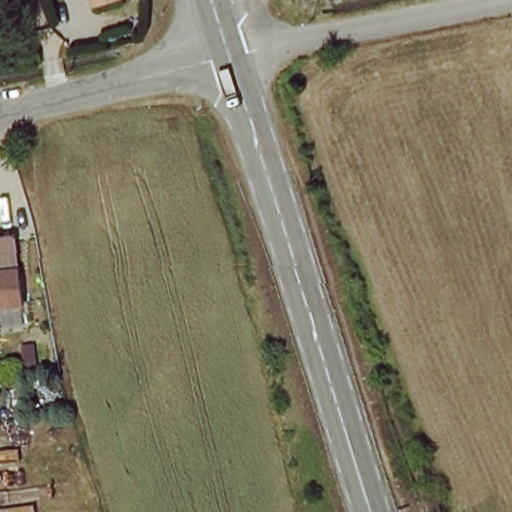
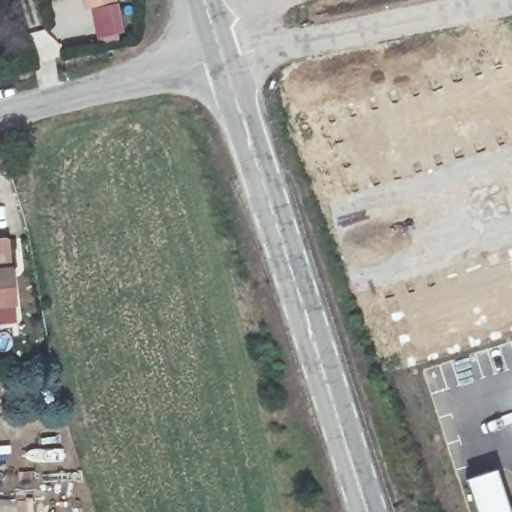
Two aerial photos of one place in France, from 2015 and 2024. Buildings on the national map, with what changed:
unchanged [(86,7),(84,0),(110,0),(86,7)]
unchanged [(0,268),(0,240),(11,239),(12,267),(0,268)]
unchanged [(6,272),(12,309),(0,310),(0,272),(6,272)]
new [(510,510),(510,512),(476,512),(465,477),(496,468),(510,510)]
new [(510,512),(510,510),(512,509),(512,512),(510,512)]

